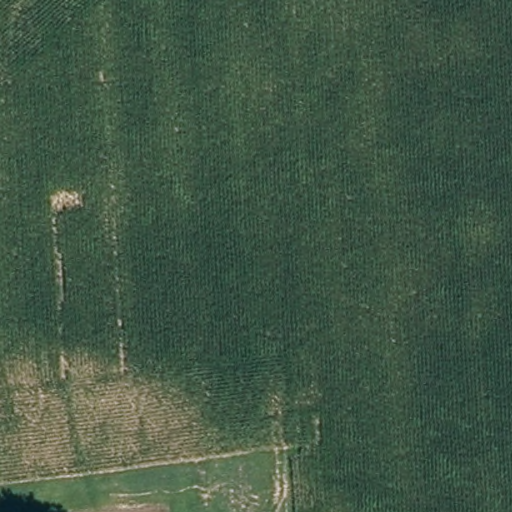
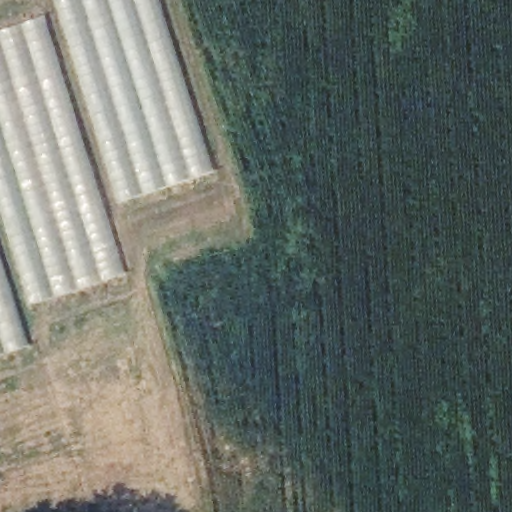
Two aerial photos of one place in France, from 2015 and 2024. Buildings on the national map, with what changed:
new [(212,172),(117,204),(54,0),(159,0),(212,172)]
new [(0,210),(0,30),(42,17),(125,276),(30,306),(0,210)]
new [(27,347),(0,356),(0,260),(27,347)]

